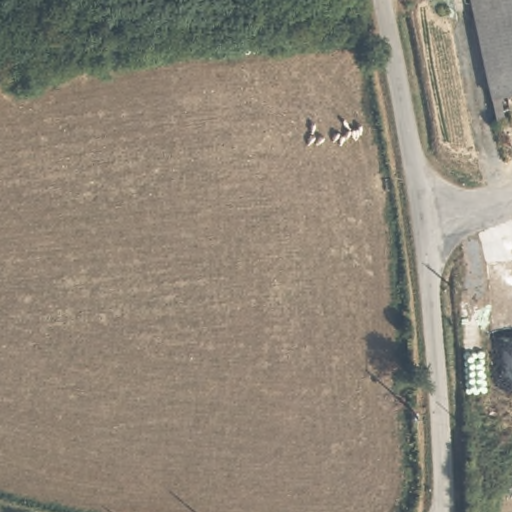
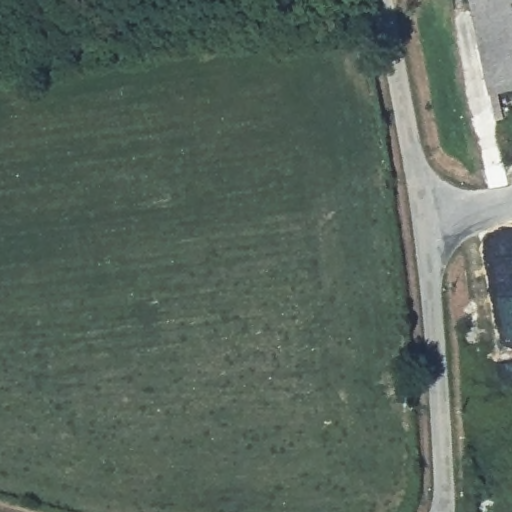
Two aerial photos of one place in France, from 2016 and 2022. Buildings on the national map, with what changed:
unchanged [(466,0),(512,0),(512,92),(486,98),(466,0)]

